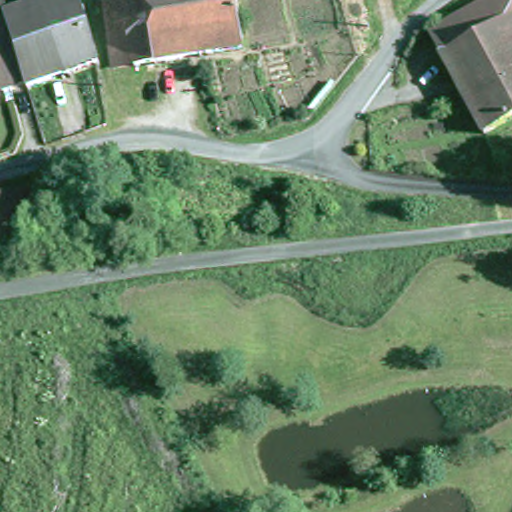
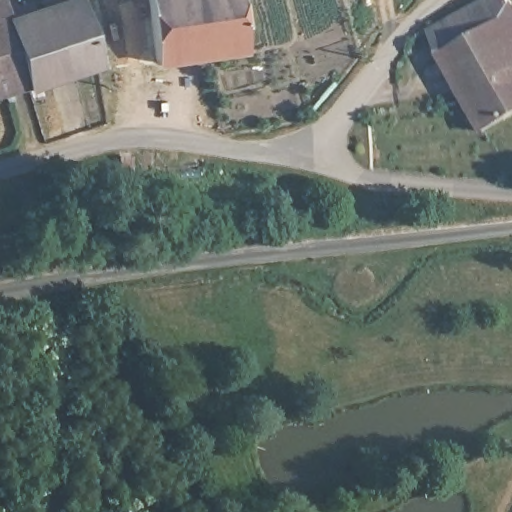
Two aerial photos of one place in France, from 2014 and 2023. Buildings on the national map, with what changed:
unchanged [(0,94),(0,0),(8,0),(30,87),(0,94)]
unchanged [(8,0),(66,0),(68,5),(87,0),(92,0),(111,74),(32,94),(30,87),(8,0)]
unchanged [(108,1),(110,0),(129,0),(141,68),(117,72),(108,1)]
unchanged [(129,0),(241,0),(251,50),(201,58),(141,68),(129,0)]
unchanged [(512,0),(512,119),(481,137),(420,38),(489,0),(512,0)]
unchanged [(48,197),(55,231),(0,239),(0,192),(47,186),(48,197)]

